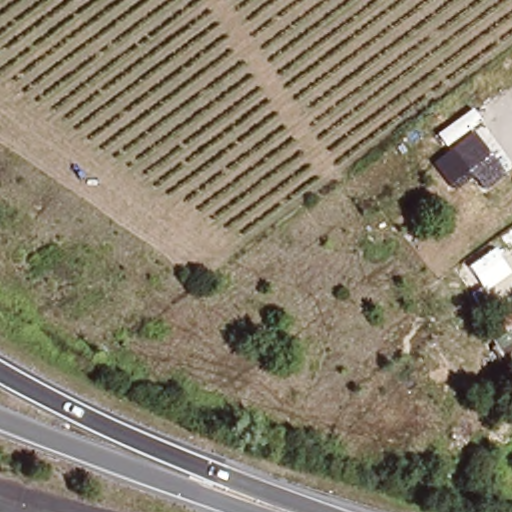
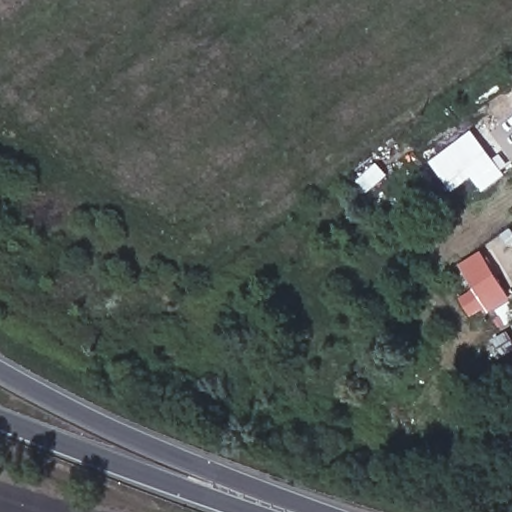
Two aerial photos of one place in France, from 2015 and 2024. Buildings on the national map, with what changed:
unchanged [(484,192),(472,177),(453,191),(431,162),(472,131),(505,175),(484,192)]
new [(490,313),(486,307),(471,317),(459,298),(475,289),(460,266),(481,253),(510,300),(490,313)]

